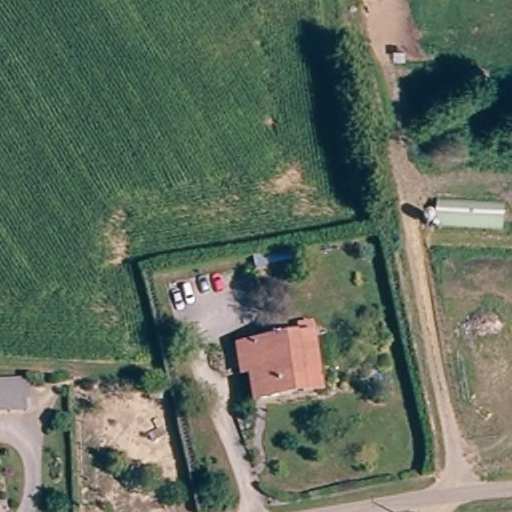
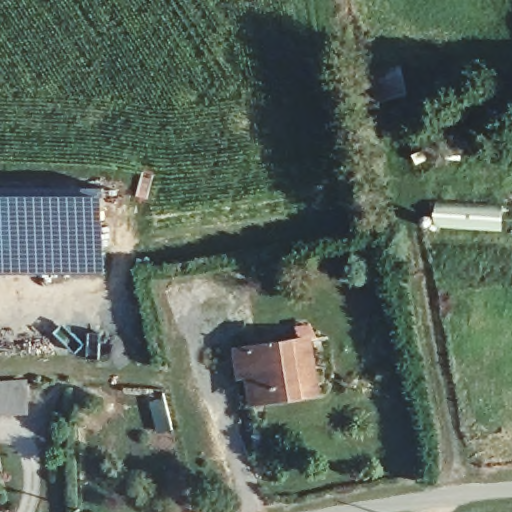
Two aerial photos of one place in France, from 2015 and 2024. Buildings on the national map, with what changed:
new [(109,272),(0,273),(0,189),(110,190),(109,272)]
unchanged [(506,211),(504,236),(437,231),(438,206),(506,211)]
unchanged [(273,399),(258,401),(253,372),(236,375),(232,352),(249,350),(249,349),(307,337),(315,375),(317,391),(273,399)]
unchanged [(0,384),(21,382),(22,418),(0,421),(0,384)]

